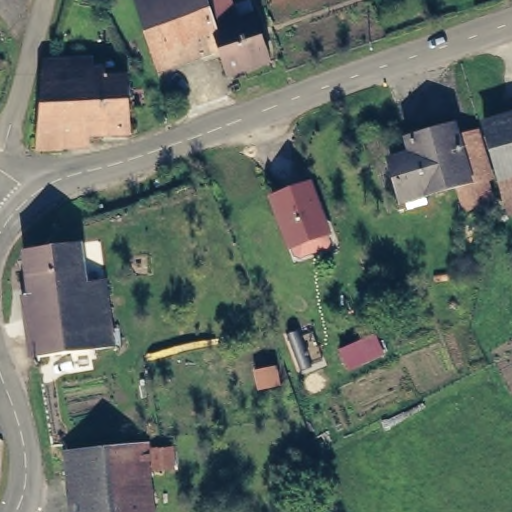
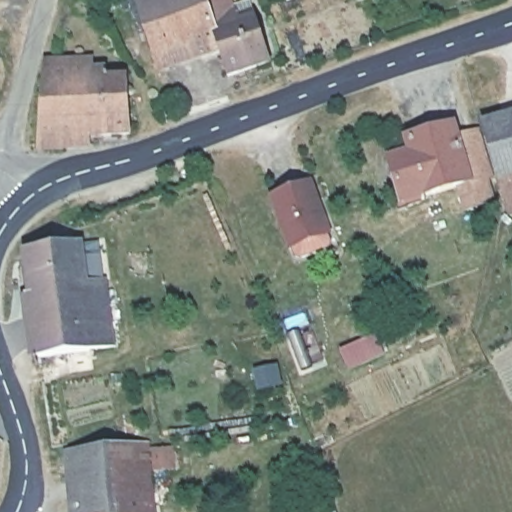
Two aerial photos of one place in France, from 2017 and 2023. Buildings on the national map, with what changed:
unchanged [(0,1),(0,0),(1,0),(1,1),(0,1)]
unchanged [(134,0),(213,0),(217,14),(218,15),(241,9),(243,8),(243,10),(246,19),(246,20),(247,20),(263,15),(264,15),(264,16),(278,60),(278,61),(276,61),(226,76),(224,76),(224,75),(214,42),(214,41),(213,41),(203,44),(201,45),(154,58),(153,59),(153,57),(134,0)]
unchanged [(64,152),(37,152),(40,72),(50,71),(50,61),(86,59),(87,71),(100,71),(100,76),(125,77),(128,134),(65,139),(64,152)]
unchanged [(480,130),(512,119),(512,195),(502,199),(500,199),(500,198),(479,131),(479,130),(480,130)]
unchanged [(391,213),(390,213),(389,212),(382,182),(382,181),(383,181),(387,179),(389,179),(404,175),(406,175),(405,173),(400,154),(400,153),(401,152),(447,138),(448,138),(449,139),(451,148),(452,149),(453,149),(472,143),(474,142),(474,143),(493,205),(493,206),(492,207),(455,218),(454,218),(454,217),(447,196),(446,194),(445,195),(398,210),(397,211),(395,211),(391,213)]
unchanged [(311,179),(325,238),(289,247),(275,190),(311,179)]
unchanged [(49,247),(78,243),(79,243),(79,244),(82,284),(82,285),(83,285),(99,283),(100,283),(100,284),(103,342),(103,343),(101,344),(30,357),(28,357),(28,356),(25,291),(25,290),(24,252),(24,251),(25,251),(48,247),(49,247)]
unchanged [(363,354),(326,367),(319,344),(356,333),(363,354)]
unchanged [(68,448),(149,443),(150,443),(151,444),(156,512),(71,512),(70,500),(70,499),(71,499),(82,498),(83,498),(83,497),(81,473),(81,472),(80,472),(69,472),(68,472),(68,471),(67,450),(66,449),(68,448)]
unchanged [(159,445),(179,443),(180,443),(180,444),(182,461),(182,463),(181,463),(161,464),(160,465),(160,463),(158,446),(158,445),(159,445)]

